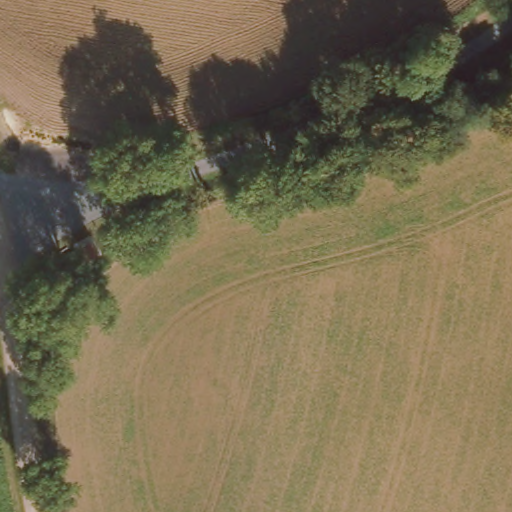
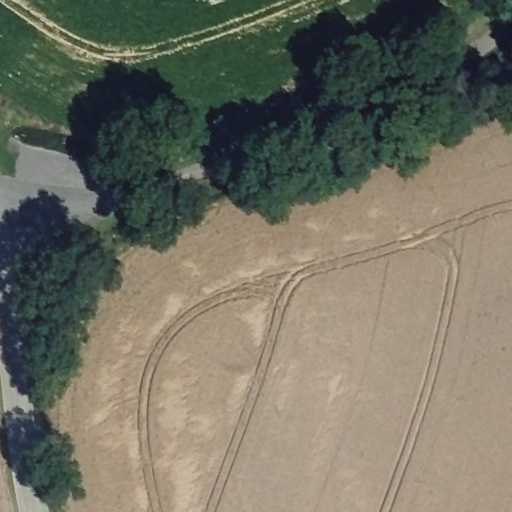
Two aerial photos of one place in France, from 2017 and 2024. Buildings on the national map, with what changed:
unchanged [(94,246),(99,261),(81,270),(75,255),(94,246)]

